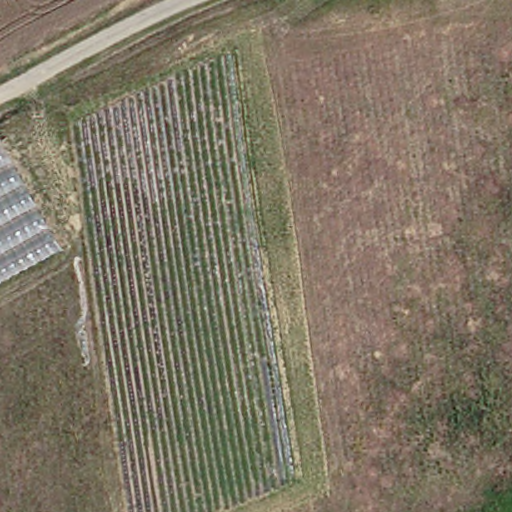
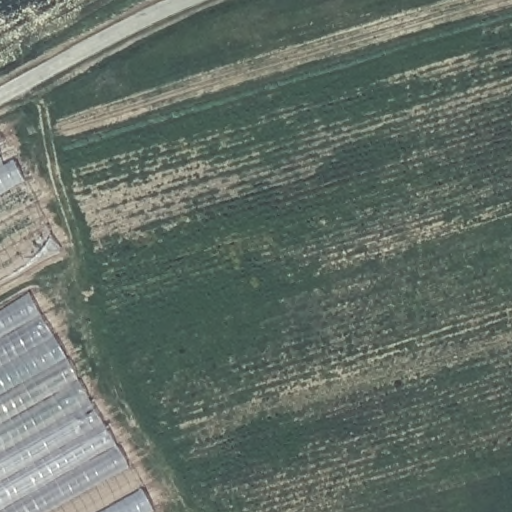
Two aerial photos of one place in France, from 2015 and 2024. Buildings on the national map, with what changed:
new [(60,246),(0,280),(0,143),(60,246)]
new [(27,296),(150,512),(0,512),(0,312),(27,296)]

